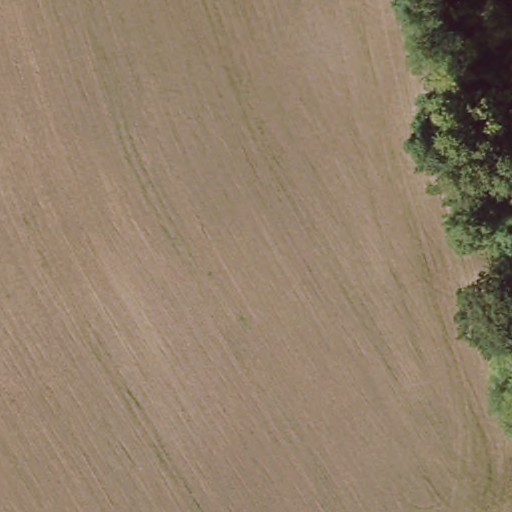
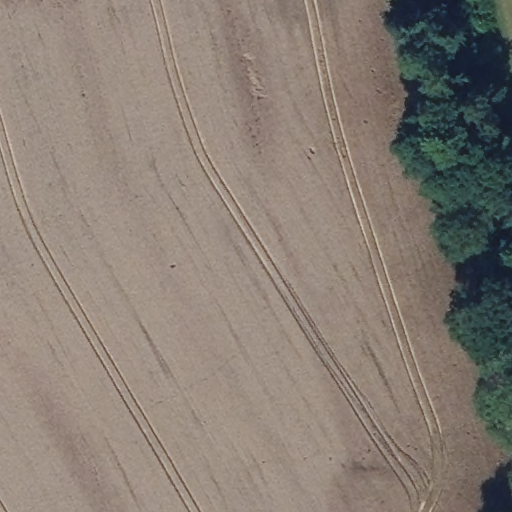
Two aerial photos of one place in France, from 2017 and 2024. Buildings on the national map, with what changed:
unchanged [(337,34),(350,63),(319,77),(306,48),(337,34)]

